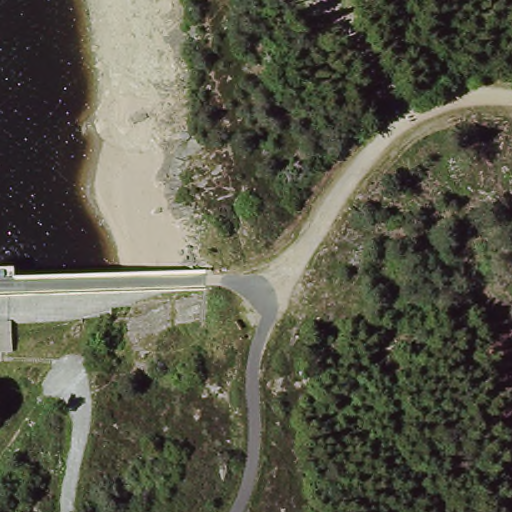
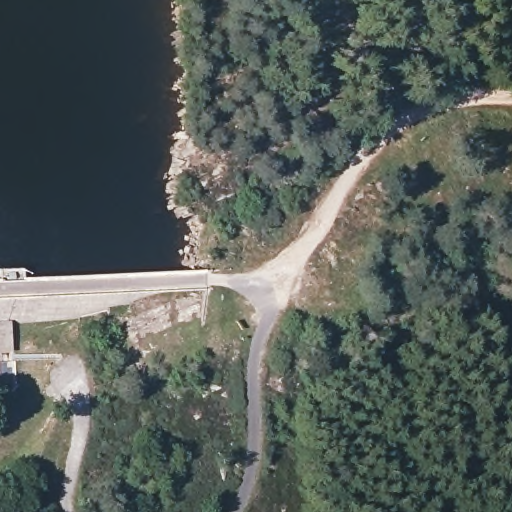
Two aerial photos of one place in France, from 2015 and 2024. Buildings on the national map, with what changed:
unchanged [(0,352),(0,319),(16,319),(16,352),(0,352)]

